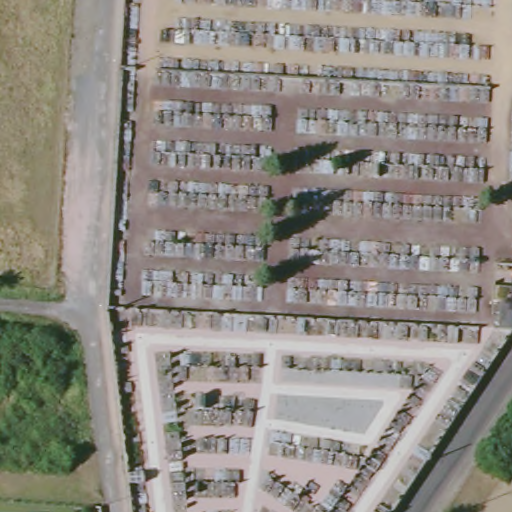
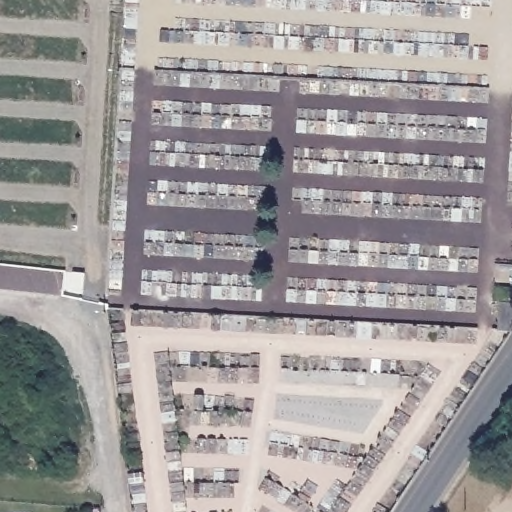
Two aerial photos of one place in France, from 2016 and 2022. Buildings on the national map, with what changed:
unchanged [(499,331),(501,302),(512,302),(512,332),(499,331)]

